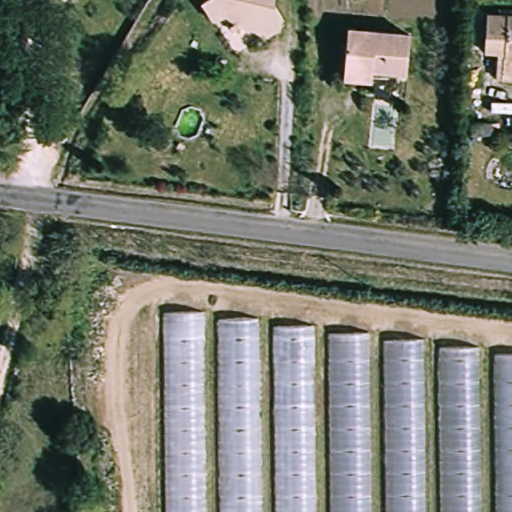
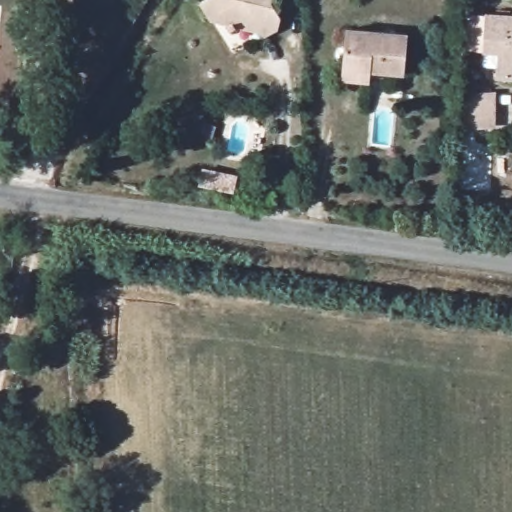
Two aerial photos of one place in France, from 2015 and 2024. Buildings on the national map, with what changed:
unchanged [(279,14),(274,19),(278,24),(262,35),(247,18),(227,33),(216,18),(205,24),(193,9),(204,0),(267,0),(279,14)]
unchanged [(482,15),(512,17),(512,64),(482,61),(482,15)]
unchanged [(337,81),(337,70),(340,31),(400,34),(397,78),(362,78),(362,84),(337,81)]
new [(495,93),(495,129),(462,129),(462,92),(495,93)]
demolished [(422,339),(424,512),(162,512),(159,312),(202,312),(422,339)]
demolished [(443,512),(440,349),(512,357),(512,512),(443,512)]

